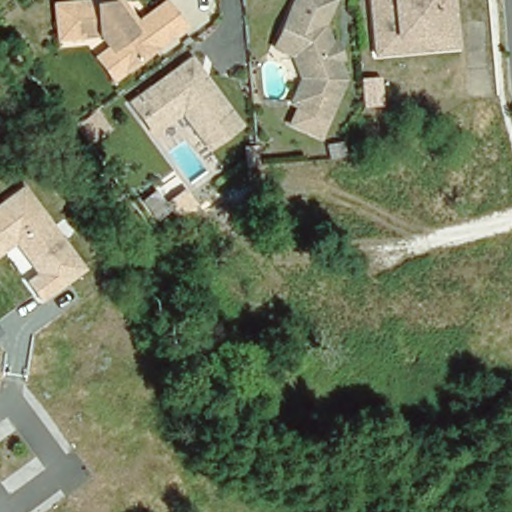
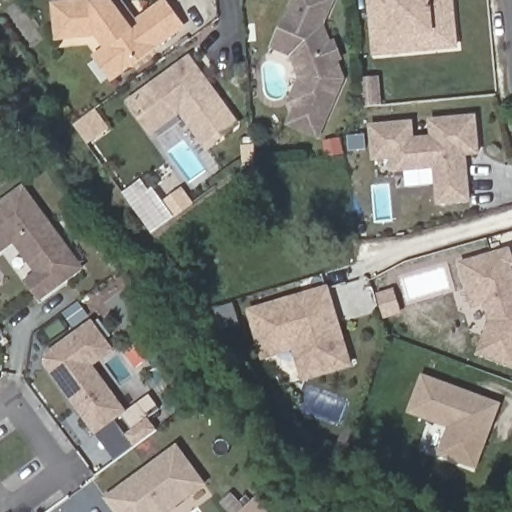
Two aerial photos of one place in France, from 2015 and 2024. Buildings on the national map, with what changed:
unchanged [(295,106),(290,105),(300,80),(291,56),(272,48),(280,32),(294,0),(330,0),(331,0),(320,27),(328,47),(332,45),(338,60),(334,61),(341,80),(325,120),(319,142),(286,129),(295,106)]
unchanged [(454,31),(395,36),(396,54),(375,56),(369,0),(451,0),(454,31)]
unchanged [(102,35),(62,40),(59,7),(100,2),(100,7),(125,4),(140,25),(169,4),(187,28),(129,71),(115,81),(100,60),(114,50),(102,35)]
unchanged [(454,31),(455,49),(396,54),(395,36),(454,31)]
unchanged [(206,150),(180,114),(151,135),(129,105),(189,61),(199,75),(205,83),(237,127),(206,150)]
unchanged [(96,110),(106,124),(82,141),(72,127),(96,110)]
new [(480,155),(467,156),(471,202),(436,205),(434,170),(392,172),(392,160),(373,161),(370,124),(413,120),(415,137),(430,136),(429,120),(476,115),(480,155)]
new [(124,193),(144,178),(162,202),(184,187),(195,203),(153,234),(124,193)]
unchanged [(39,301),(25,280),(35,273),(15,246),(0,256),(0,205),(25,188),(86,270),(39,301)]
new [(512,261),(512,265),(510,265),(512,272),(512,365),(477,352),(490,320),(485,302),(473,306),(460,263),(508,248),(512,261)]
new [(310,380),(298,346),(281,335),(260,340),(250,312),(327,289),(350,365),(310,380)]
new [(147,417),(156,430),(134,445),(114,460),(95,435),(82,417),(82,413),(80,409),(77,411),(44,366),(45,354),(91,320),(107,341),(90,354),(96,363),(93,366),(126,411),(115,420),(125,433),(147,417)]
new [(422,376),(498,405),(475,467),(439,455),(450,427),(409,412),(422,376)]
new [(205,485),(172,508),(168,502),(156,512),(116,512),(106,498),(176,446),(205,485)]

